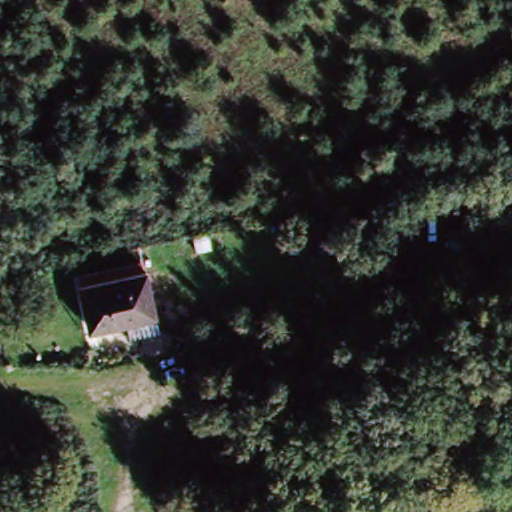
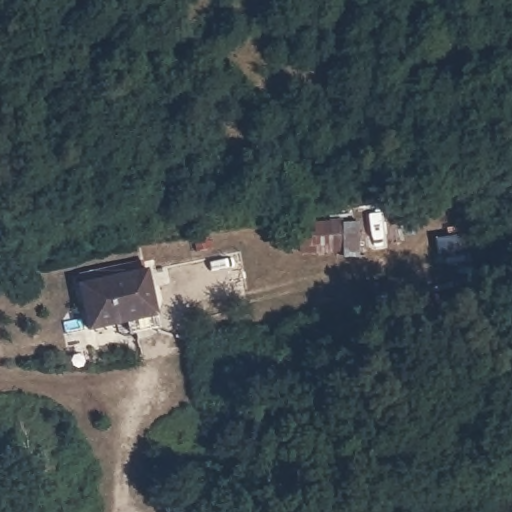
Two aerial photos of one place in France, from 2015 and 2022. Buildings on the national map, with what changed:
unchanged [(340,223),(342,254),(299,260),(294,227),(340,223)]
unchanged [(145,280),(154,325),(87,338),(77,295),(145,280)]

